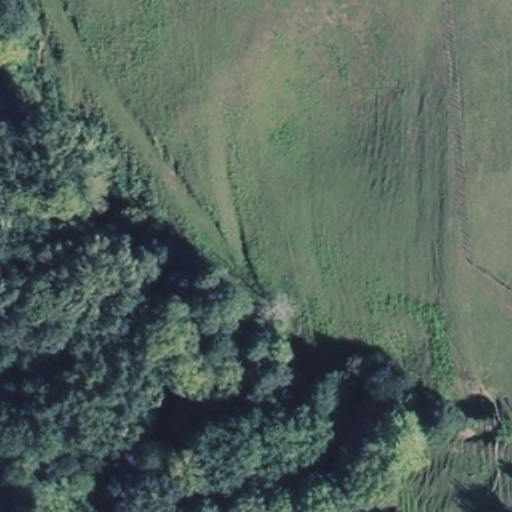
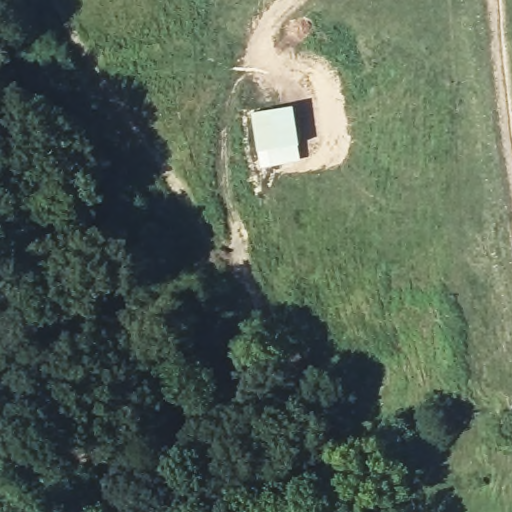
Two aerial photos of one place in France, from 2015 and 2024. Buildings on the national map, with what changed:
new [(292,104),(300,160),(260,167),(250,111),(292,104)]

